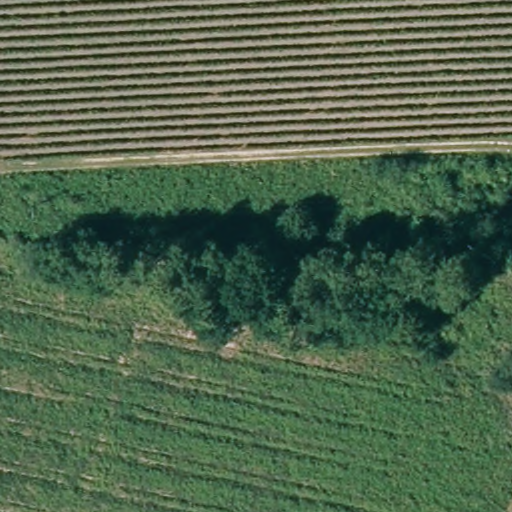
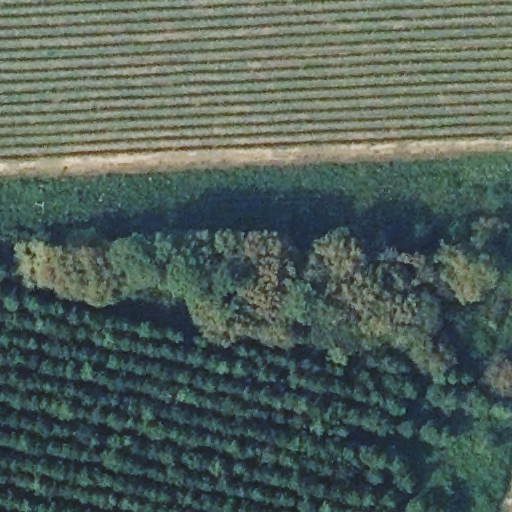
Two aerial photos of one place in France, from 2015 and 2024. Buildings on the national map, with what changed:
[]

